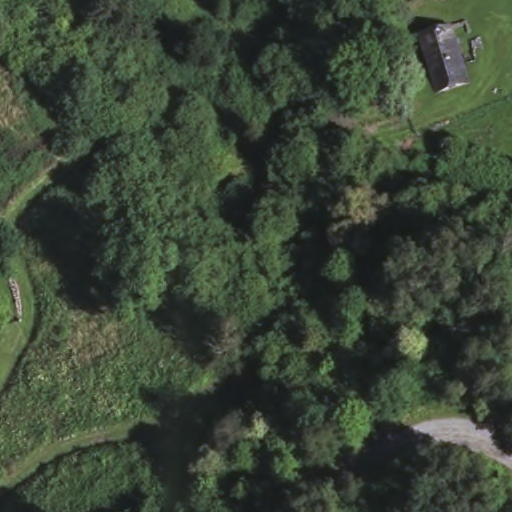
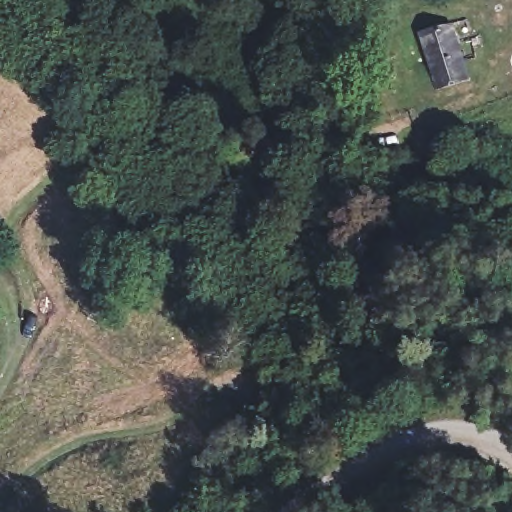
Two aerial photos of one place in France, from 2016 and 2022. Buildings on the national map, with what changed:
unchanged [(467,71),(427,83),(414,23),(435,18),(451,14),(467,71)]

